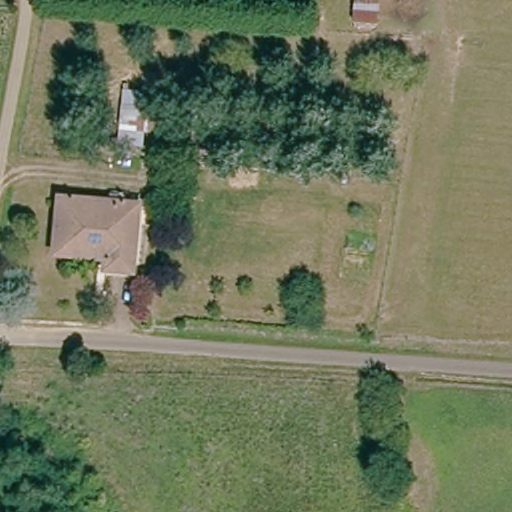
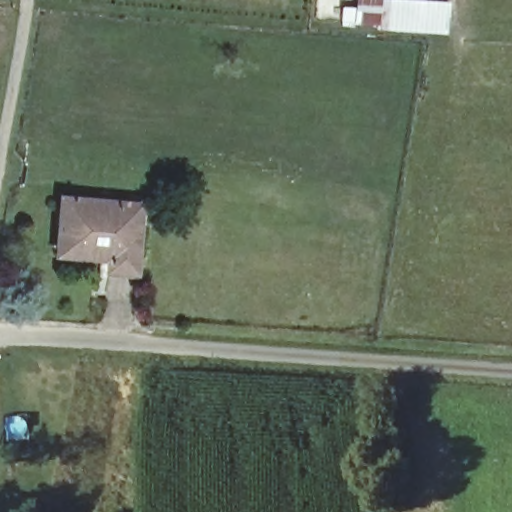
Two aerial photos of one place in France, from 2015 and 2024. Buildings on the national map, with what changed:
new [(376,27),(351,25),(354,0),(445,0),(442,32),(376,27)]
unchanged [(131,271),(100,268),(102,251),(56,247),(60,198),(137,205),(131,271)]

